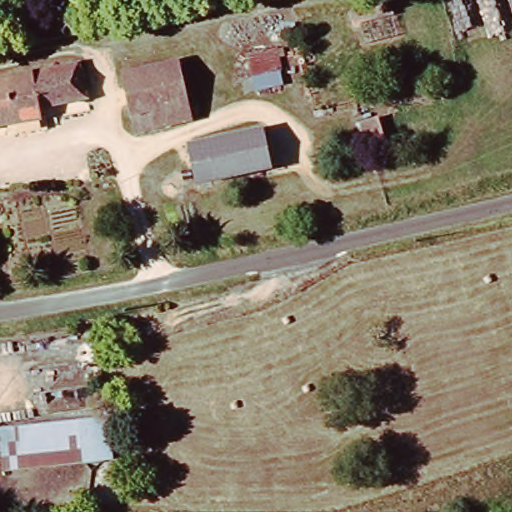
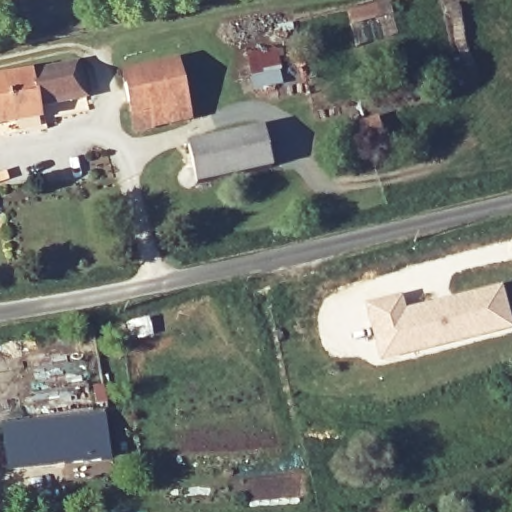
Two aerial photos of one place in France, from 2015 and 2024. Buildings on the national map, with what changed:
unchanged [(280,85),(258,89),(251,60),(273,55),(280,85)]
unchanged [(96,100),(19,115),(20,122),(0,126),(0,81),(89,62),(96,100)]
unchanged [(148,130),(136,78),(189,67),(200,119),(148,130)]
unchanged [(280,170),(205,185),(198,146),(273,131),(280,170)]
new [(401,293),(406,308),(501,285),(512,326),(512,330),(378,365),(362,303),(401,293)]
unchanged [(104,461),(32,470),(26,427),(98,417),(104,461)]

